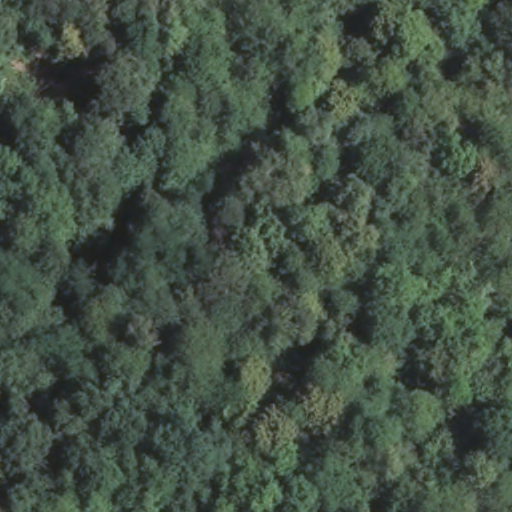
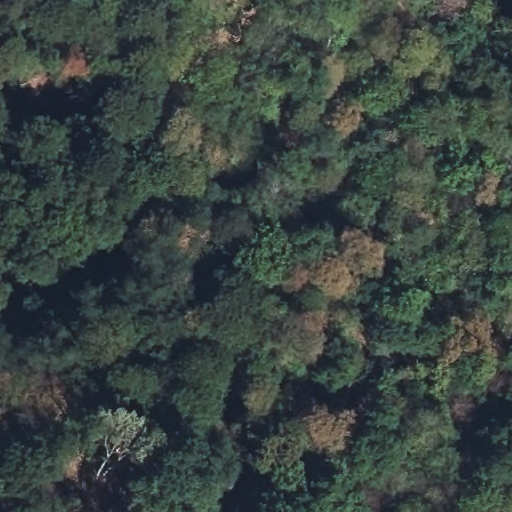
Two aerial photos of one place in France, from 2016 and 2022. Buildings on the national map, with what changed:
[]

